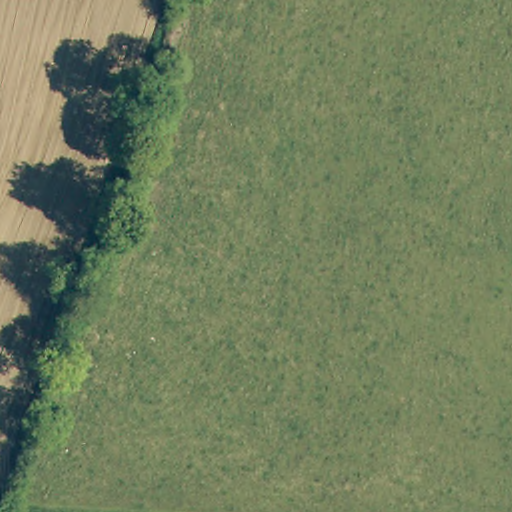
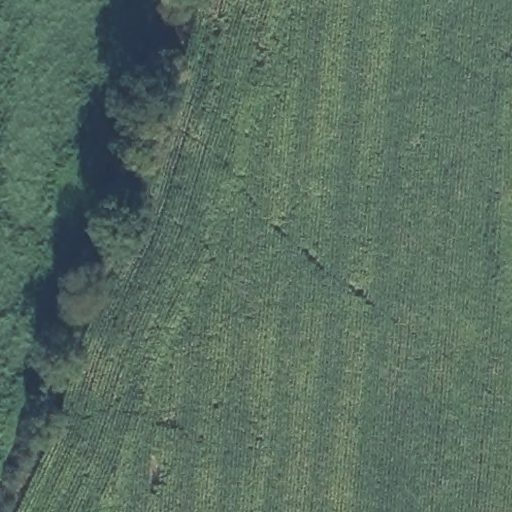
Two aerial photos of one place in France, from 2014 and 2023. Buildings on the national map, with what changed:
[]

